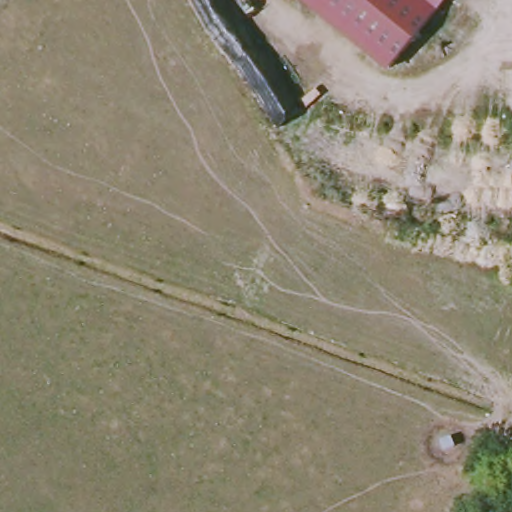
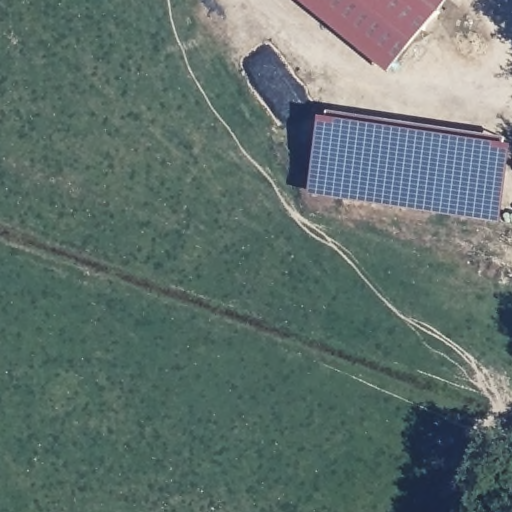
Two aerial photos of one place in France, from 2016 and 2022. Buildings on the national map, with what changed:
unchanged [(383,66),(304,0),(438,0),(431,8),(383,66)]
new [(512,144),(512,148),(500,223),(307,194),(319,116),(326,116),(328,111),(505,136),(504,143),(512,144)]

